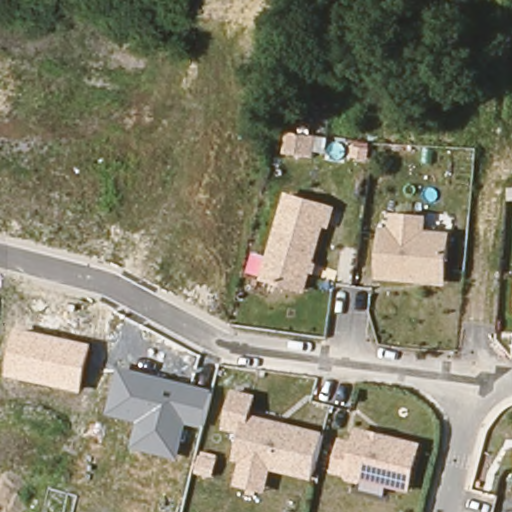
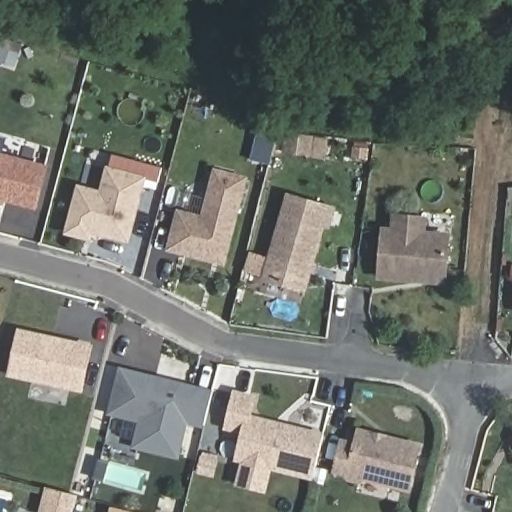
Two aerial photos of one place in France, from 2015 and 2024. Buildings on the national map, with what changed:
unchanged [(313,135),(311,156),(285,155),(286,133),(313,135)]
new [(0,201),(0,152),(48,164),(36,210),(0,201)]
new [(93,234),(91,243),(63,234),(76,184),(100,190),(106,166),(147,177),(129,244),(93,234)]
new [(166,252),(177,209),(201,215),(213,168),(248,176),(225,266),(166,252)]
unchanged [(337,207),(331,229),(325,229),(314,262),(319,264),(315,275),(311,275),(306,291),(260,279),(286,192),(337,207)]
unchanged [(391,229),(391,213),(428,215),(427,232),(452,234),(446,284),(375,279),(380,229),(391,229)]
unchanged [(94,343),(83,394),(7,377),(18,328),(94,343)]
unchanged [(212,389),(203,427),(187,424),(179,459),(131,448),(136,421),(107,414),(119,367),(212,389)]
unchanged [(314,481),(272,472),(266,494),(235,487),(242,462),(235,460),(242,435),(223,431),(234,389),(258,396),(254,415),(323,432),(314,481)]
unchanged [(354,443),(359,427),(424,443),(409,493),(331,474),(339,439),(354,443)]
new [(48,488),(76,496),(72,512),(41,512),(48,488)]
new [(115,507),(136,512),(114,512),(115,507)]

